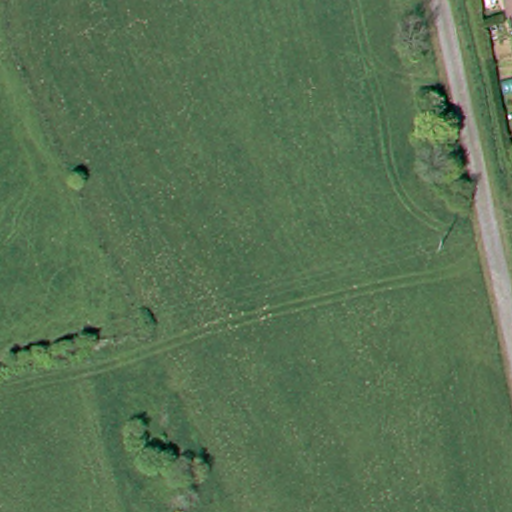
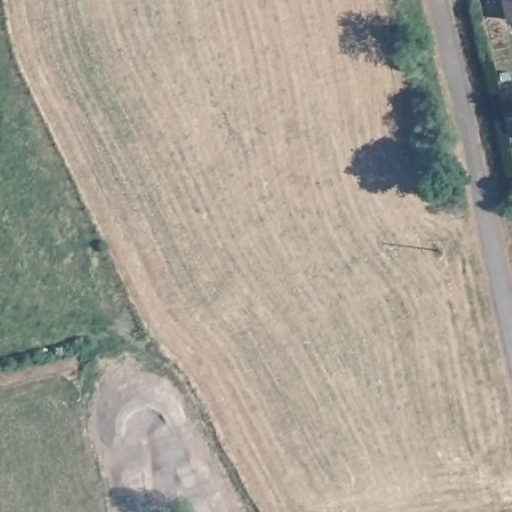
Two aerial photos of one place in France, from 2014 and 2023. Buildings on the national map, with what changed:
unchanged [(501,0),(512,0),(512,14),(505,15),(501,0)]

